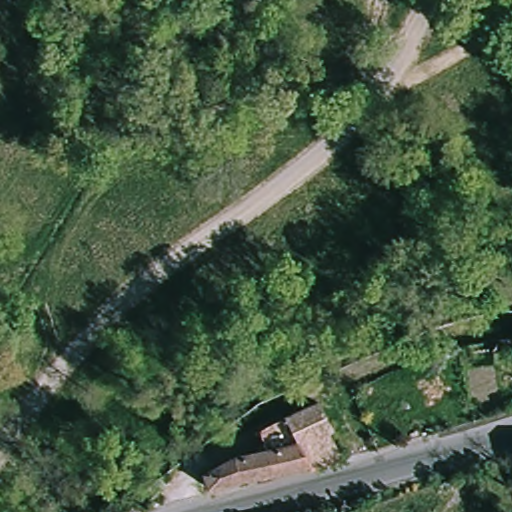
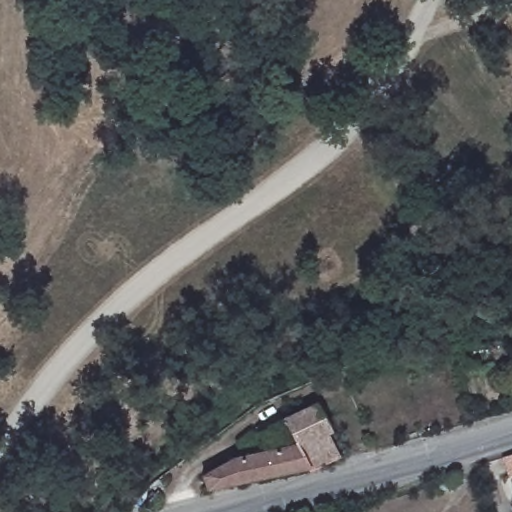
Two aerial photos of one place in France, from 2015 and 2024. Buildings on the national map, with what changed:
unchanged [(495,344),(496,350),(490,351),(489,345),(495,344)]
unchanged [(311,403),(318,417),(326,431),(323,433),(334,456),(303,471),(301,468),(276,418),(311,403)]
unchanged [(301,468),(201,490),(196,476),(228,458),(258,451),(252,431),(276,418),(301,468)]
unchanged [(508,476),(503,457),(503,456),(512,454),(512,475),(508,476)]

